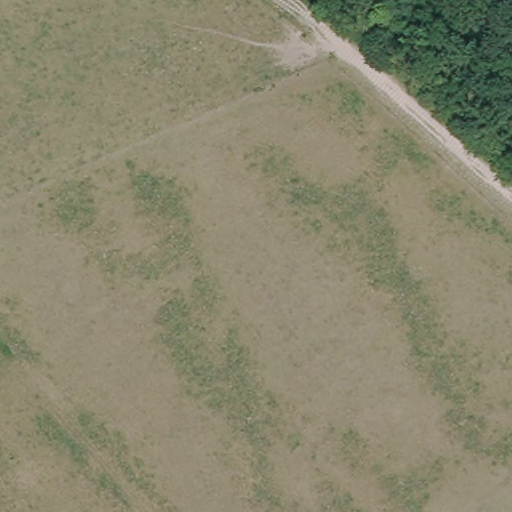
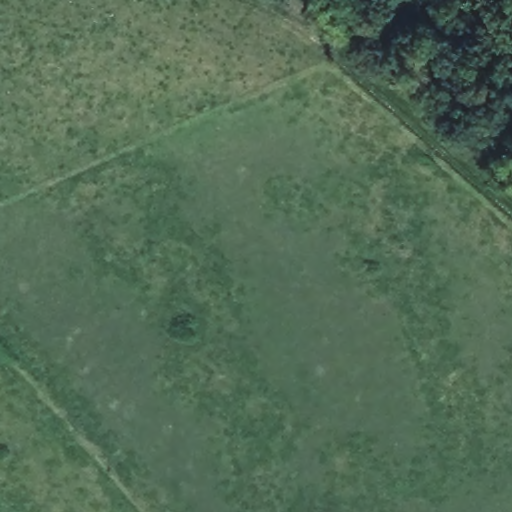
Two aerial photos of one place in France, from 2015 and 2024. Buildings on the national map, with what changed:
[]

